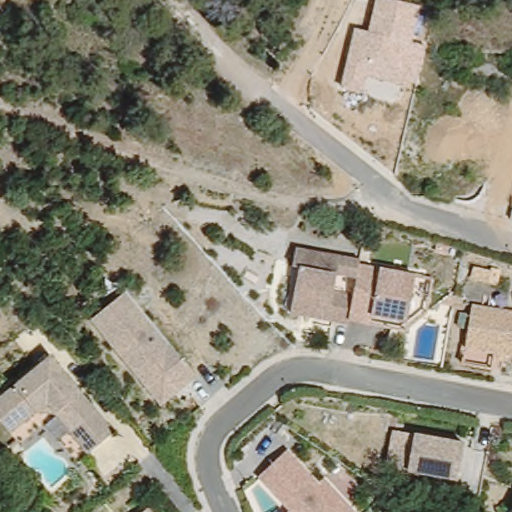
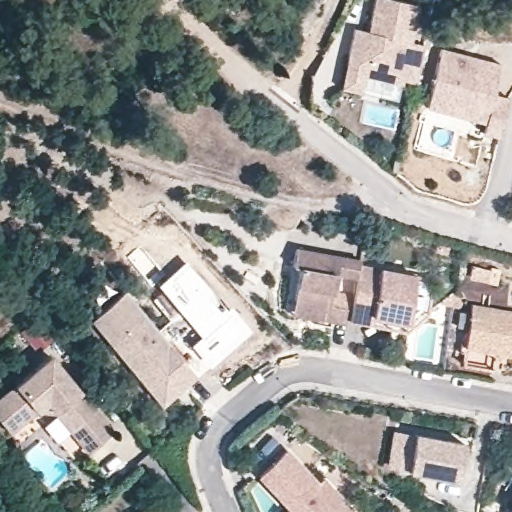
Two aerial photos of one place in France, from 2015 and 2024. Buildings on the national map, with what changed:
unchanged [(355,28),(369,31),(375,0),(398,0),(419,5),(410,43),(425,46),(416,87),(402,85),(365,75),(362,93),(341,88),(355,28)]
new [(425,109),(440,51),(500,66),(492,96),(507,99),(497,138),(481,134),(483,124),(448,115),(425,109)]
unchanged [(295,299),(301,267),(294,266),(297,248),(360,260),(360,266),(350,320),(349,325),(334,322),(323,320),(308,317),(293,314),(295,299)]
new [(226,308),(230,305),(250,330),(207,364),(206,363),(193,376),(157,331),(169,321),(153,300),(160,289),(156,284),(186,260),(226,308)]
unchanged [(396,320),(373,315),(372,324),(350,320),(360,266),(416,276),(410,312),(408,322),(396,320)]
new [(472,266),(489,270),(490,267),(499,268),(495,283),(470,279),(472,266)]
unchanged [(142,385),(105,339),(86,315),(90,312),(121,287),(195,378),(180,390),(160,407),(142,385)]
unchanged [(492,352),(462,347),(470,304),(512,312),(512,356),(500,354),(500,360),(491,358),(492,352)]
new [(36,318),(52,338),(37,350),(21,331),(36,318)]
unchanged [(43,424),(54,415),(47,406),(11,434),(0,422),(0,395),(52,352),(114,430),(85,454),(67,431),(56,440),(43,424)]
unchanged [(462,443),(454,487),(404,476),(412,433),(462,443)]
unchanged [(256,477),(282,451),(314,483),(319,478),(353,512),(285,512),(288,509),(256,477)]
unchanged [(149,512),(143,512),(147,509),(149,512)]

